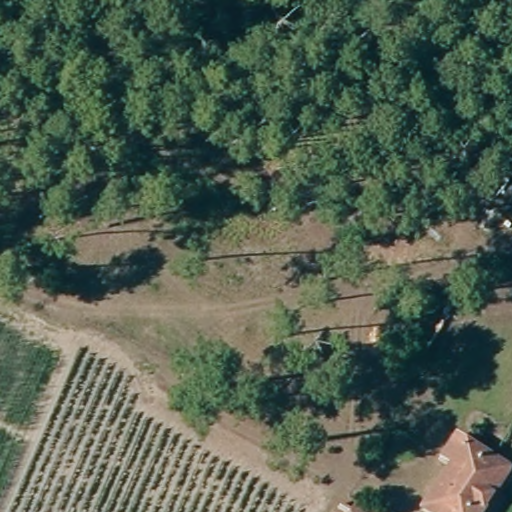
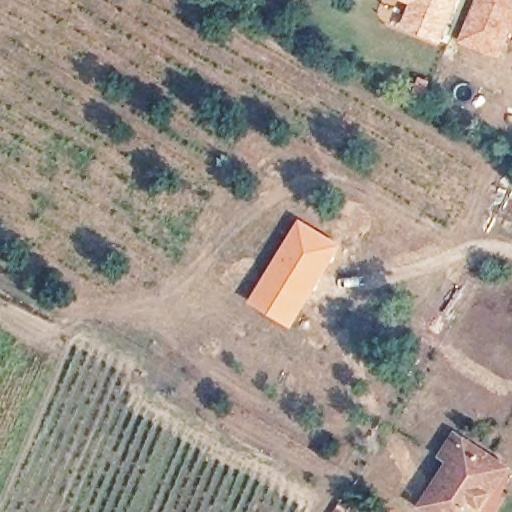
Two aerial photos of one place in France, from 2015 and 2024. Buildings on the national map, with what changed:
new [(397,29),(408,5),(399,0),(459,0),(441,46),(397,29)]
new [(512,0),(512,33),(511,32),(498,59),(458,42),(475,0),(512,0)]
new [(298,219),(341,245),(291,329),(247,303),(298,219)]
unchanged [(502,466),(508,470),(493,493),(480,512),(428,512),(423,509),(453,463),(445,457),(452,447),(457,437),(502,466)]
unchanged [(356,503),(369,512),(350,512),(356,503)]

